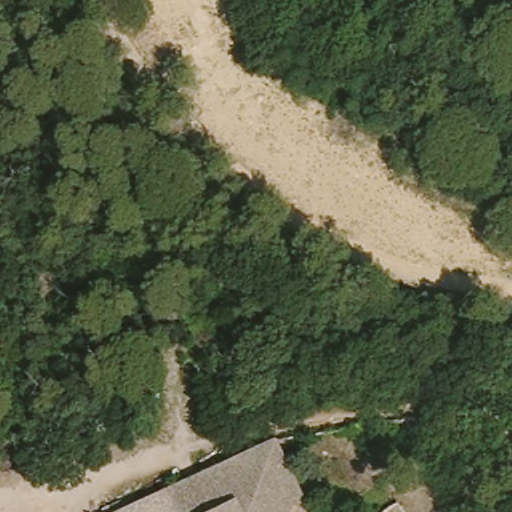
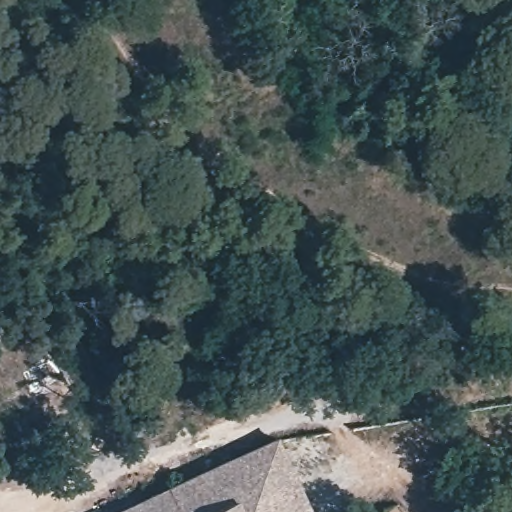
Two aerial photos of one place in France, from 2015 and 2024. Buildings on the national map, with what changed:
unchanged [(341,68),(333,83),(302,67),(318,52),(341,68)]
unchanged [(278,453),(304,512),(140,512),(278,453)]

